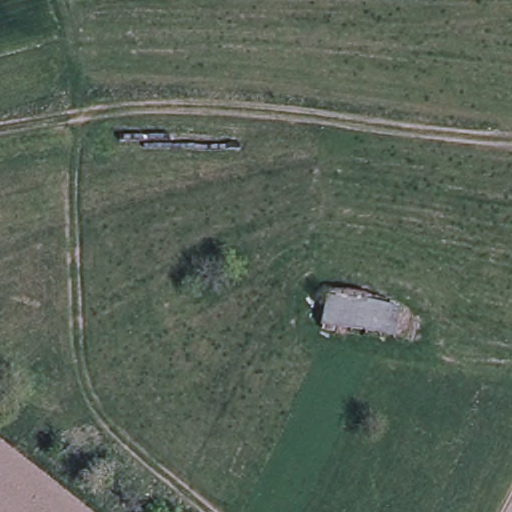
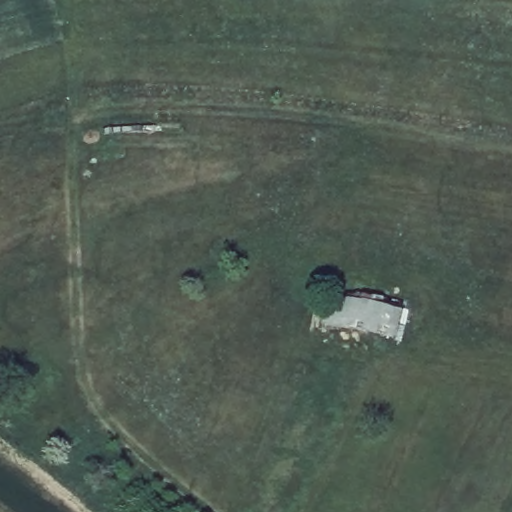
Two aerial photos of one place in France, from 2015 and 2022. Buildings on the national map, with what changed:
unchanged [(322,330),(327,297),(400,308),(397,341),(322,330)]

